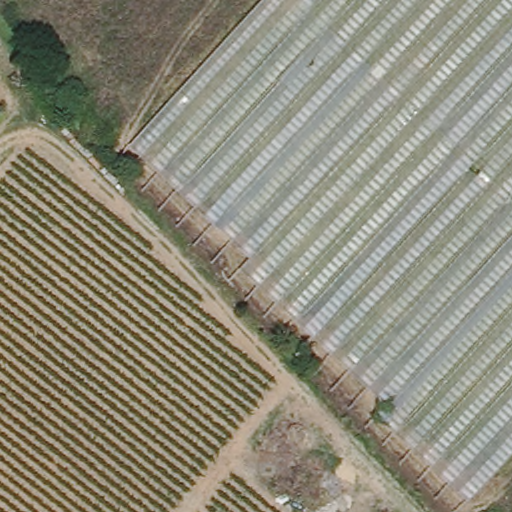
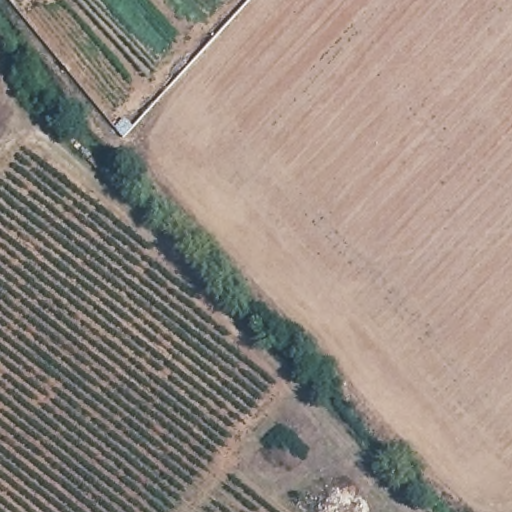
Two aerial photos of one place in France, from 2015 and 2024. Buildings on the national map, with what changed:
demolished [(469,491),(132,143),(265,0),(512,0),(512,445),(469,491)]

